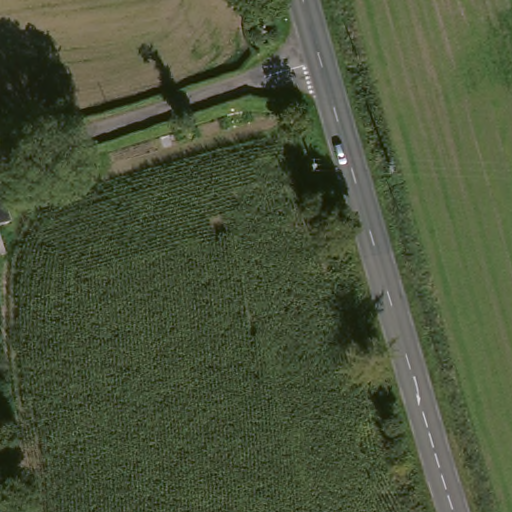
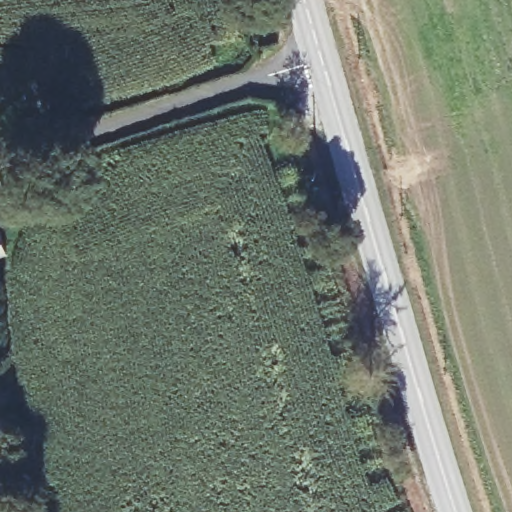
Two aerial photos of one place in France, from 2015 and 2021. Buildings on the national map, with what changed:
unchanged [(13,222),(0,226),(0,178),(13,222)]
unchanged [(5,250),(0,252),(0,234),(5,250)]

